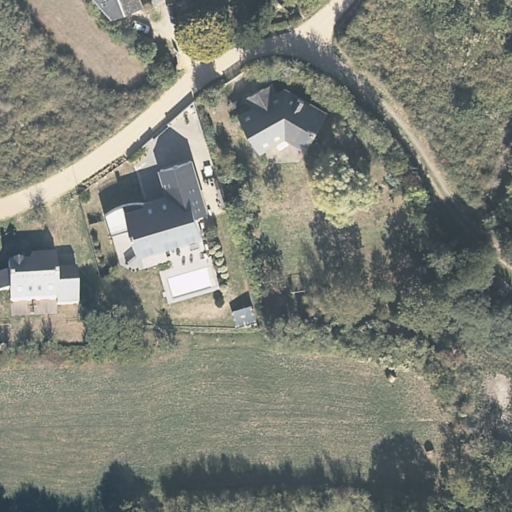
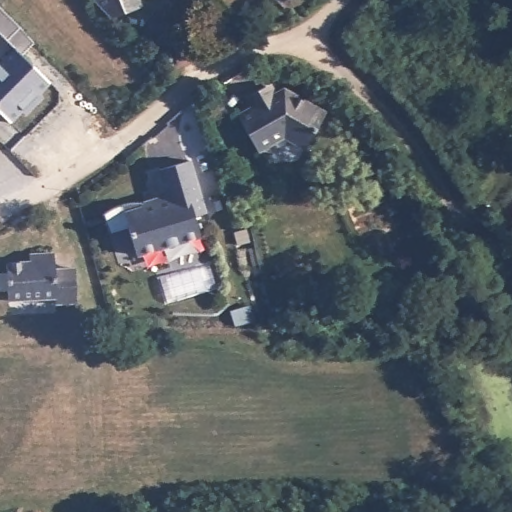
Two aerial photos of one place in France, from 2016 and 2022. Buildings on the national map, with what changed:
unchanged [(144,10),(112,22),(91,0),(139,0),(144,10)]
unchanged [(152,2),(149,1),(149,0),(155,0),(152,2)]
new [(0,111),(0,61),(14,48),(50,83),(12,122),(0,111)]
unchanged [(326,113),(305,147),(285,134),(257,149),(238,115),(252,108),(245,95),(261,86),(270,81),(277,93),(285,89),(326,113)]
unchanged [(157,170),(194,161),(207,215),(199,219),(202,238),(137,256),(129,229),(111,233),(104,213),(124,203),(163,196),(157,170)]
unchanged [(77,271),(79,306),(57,306),(57,302),(11,303),(10,294),(0,294),(0,276),(9,276),(9,267),(36,266),(36,259),(56,259),(56,271),(77,271)]

